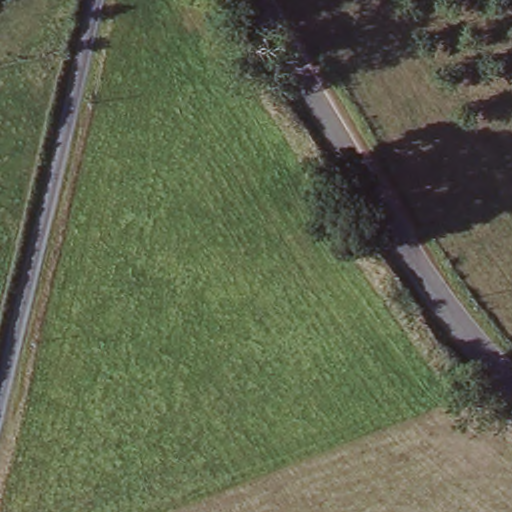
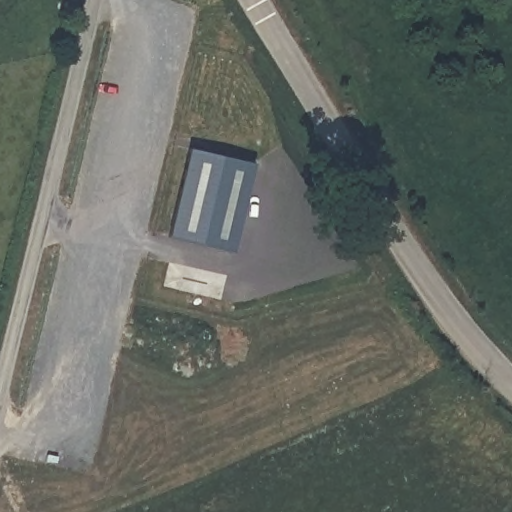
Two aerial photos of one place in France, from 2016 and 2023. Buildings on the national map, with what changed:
new [(190,147),(254,164),(234,250),(169,236),(190,147)]

